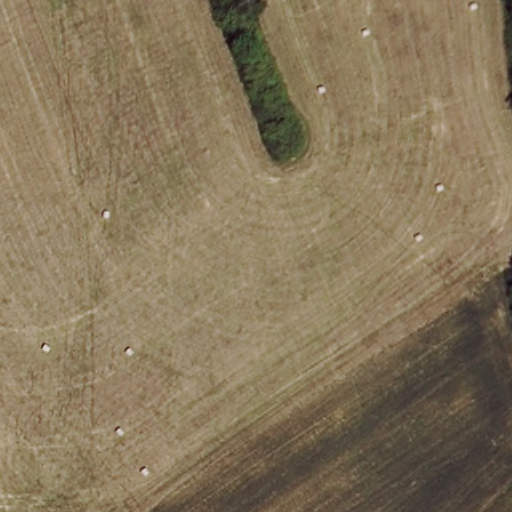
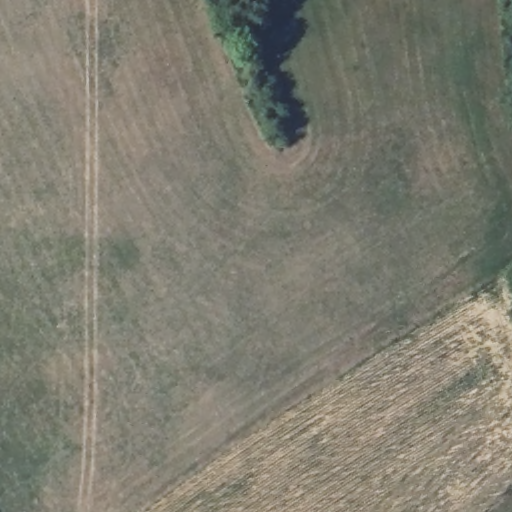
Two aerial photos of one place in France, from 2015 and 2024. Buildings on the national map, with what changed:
[]

